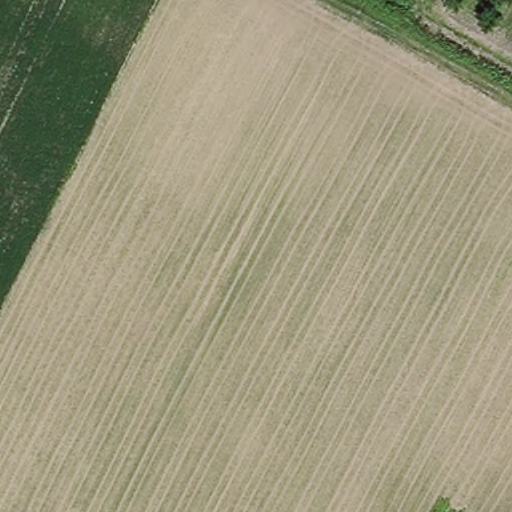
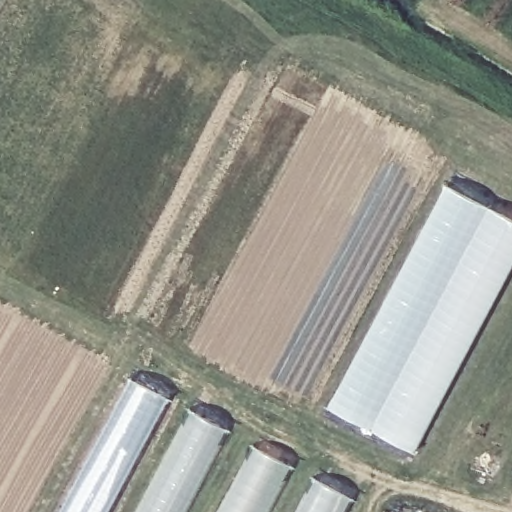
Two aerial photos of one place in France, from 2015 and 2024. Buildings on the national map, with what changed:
new [(384,302),(446,183),(512,219),(512,270),(416,452),(327,406),(384,302)]
new [(131,378),(170,399),(110,512),(59,512),(131,378)]
new [(188,408),(229,430),(187,512),(134,512),(188,408)]
new [(252,445),(293,466),(269,512),(215,512),(252,445)]
new [(324,484),(351,498),(343,512),(308,512),(324,484)]
new [(300,511),(302,512),(299,512),(300,511)]

